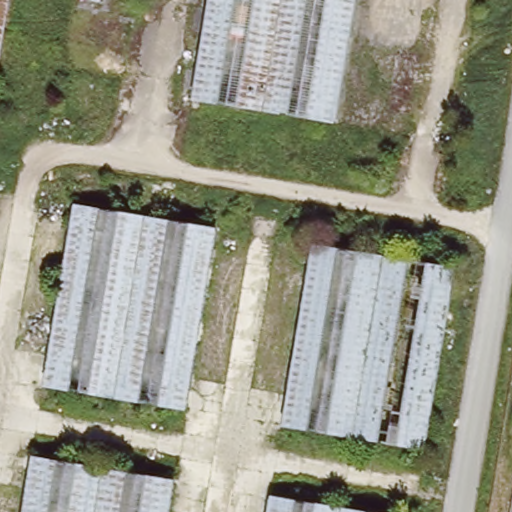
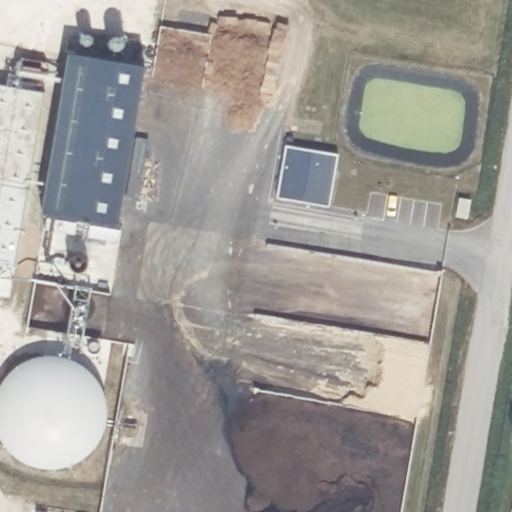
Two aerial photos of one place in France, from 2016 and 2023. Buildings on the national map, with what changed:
demolished [(11,0),(6,28),(0,63),(0,0),(11,0)]
demolished [(357,0),(334,128),(193,105),(211,0),(357,0)]
new [(41,216),(69,55),(146,66),(119,229),(41,216)]
new [(45,93),(17,267),(0,264),(0,86),(45,93)]
new [(277,198),(286,146),(339,155),(329,208),(277,198)]
new [(459,201),(469,202),(465,220),(455,218),(459,201)]
demolished [(187,416),(43,391),(76,207),(218,231),(187,416)]
demolished [(281,432),(313,249),(455,272),(425,454),(281,432)]
demolished [(174,484),(170,512),(25,512),(34,458),(174,484)]
demolished [(354,512),(268,512),(271,497),(354,512)]

